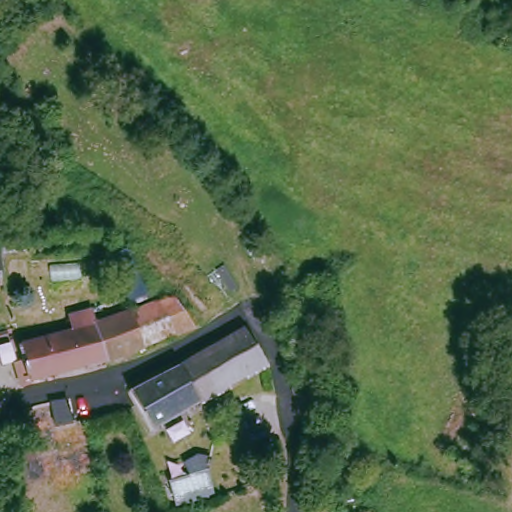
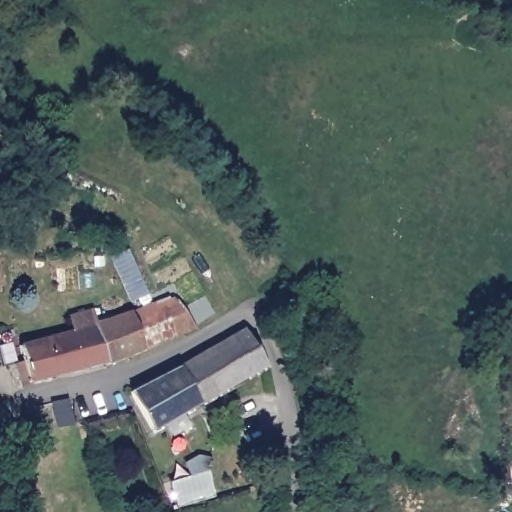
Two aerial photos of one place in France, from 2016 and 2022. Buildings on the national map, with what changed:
unchanged [(130,246),(143,280),(123,288),(112,253),(130,246)]
unchanged [(198,328),(111,359),(99,321),(164,300),(175,296),(195,323),(198,328)]
unchanged [(23,349),(45,342),(74,332),(72,321),(97,312),(99,321),(111,359),(93,366),(90,360),(54,373),(33,380),(35,383),(23,386),(17,364),(27,361),(23,349)]
unchanged [(153,424),(130,390),(243,326),(268,364),(265,366),(153,424)]
unchanged [(74,428),(57,432),(52,410),(67,405),(74,428)]
unchanged [(205,471),(208,491),(174,501),(170,481),(205,471)]

